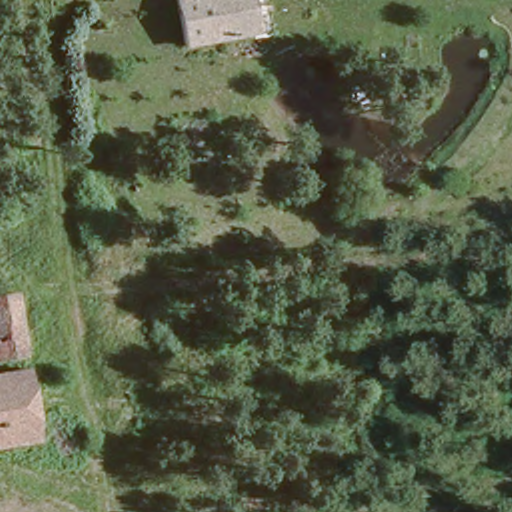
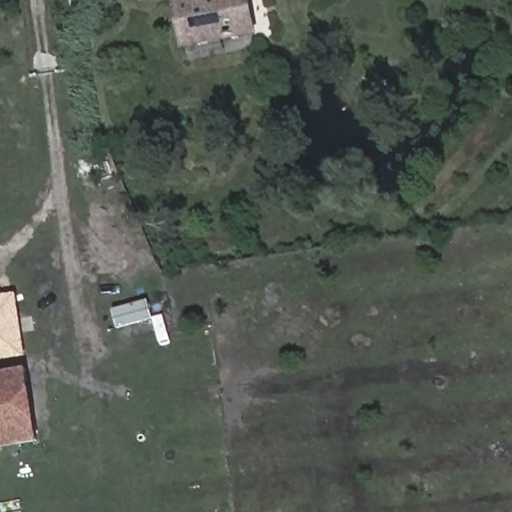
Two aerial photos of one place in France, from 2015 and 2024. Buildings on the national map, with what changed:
unchanged [(255,27),(176,40),(174,0),(252,0),(255,27)]
unchanged [(18,351),(0,352),(0,298),(12,297),(18,351)]
unchanged [(21,367),(29,436),(0,439),(0,370),(21,367)]

